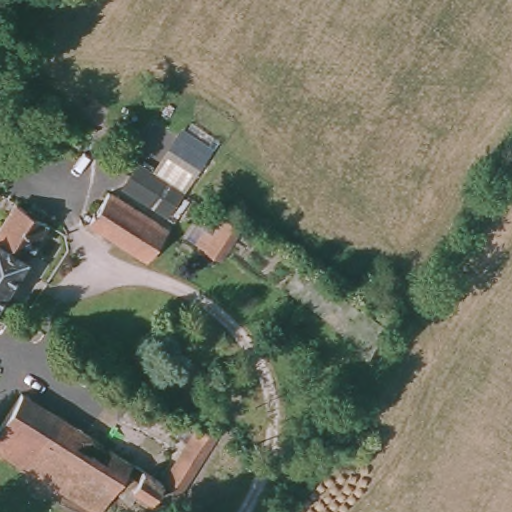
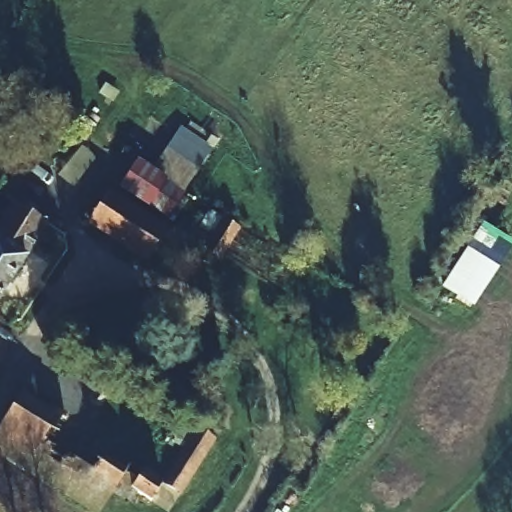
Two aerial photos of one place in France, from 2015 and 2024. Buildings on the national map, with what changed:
unchanged [(135,174),(160,191),(143,216),(117,199),(135,174)]
unchanged [(51,227),(0,302),(0,234),(20,205),(51,227)]
unchanged [(90,230),(107,205),(157,239),(142,263),(90,230)]
unchanged [(200,245),(207,232),(214,236),(222,220),(240,228),(225,259),(200,245)]
new [(440,287),(484,223),(512,242),(512,245),(470,307),(440,287)]
unchanged [(119,485),(99,512),(88,512),(0,456),(0,425),(20,394),(160,485),(147,505),(119,485)]
unchanged [(348,449),(347,450),(342,446),(357,423),(362,427),(364,425),(374,433),(358,456),(348,449)]
unchanged [(197,429),(210,439),(175,494),(160,485),(197,429)]

